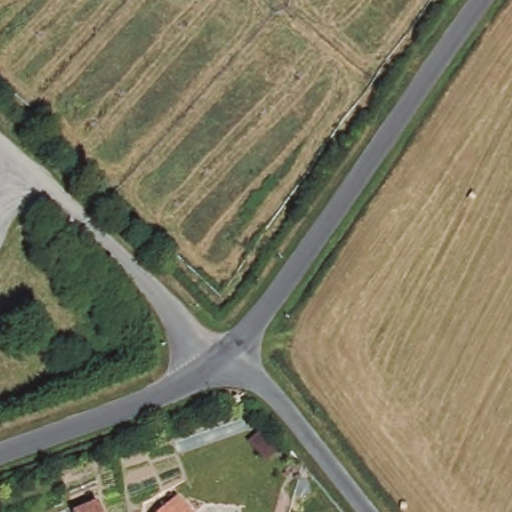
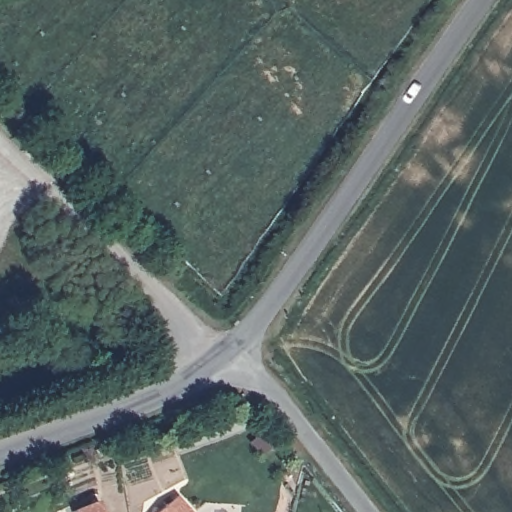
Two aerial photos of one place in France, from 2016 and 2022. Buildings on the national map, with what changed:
unchanged [(161,512),(177,499),(187,512),(161,512)]
unchanged [(104,512),(76,512),(100,503),(104,512)]

